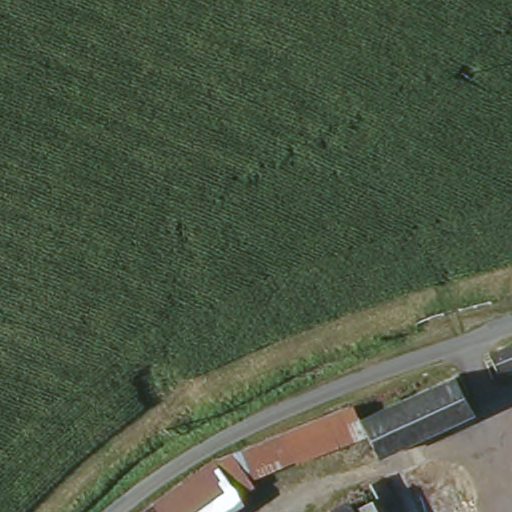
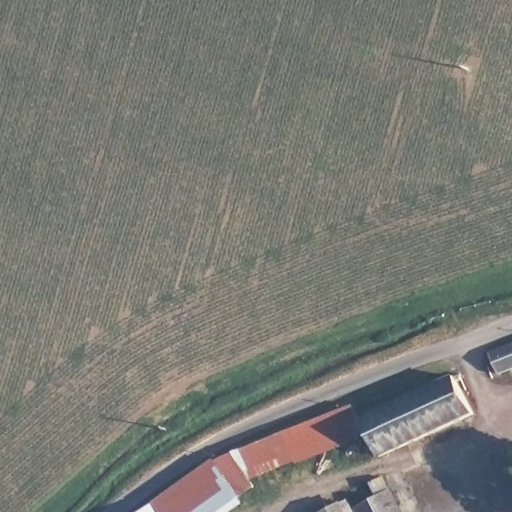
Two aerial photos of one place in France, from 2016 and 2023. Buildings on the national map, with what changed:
unchanged [(512,369),(497,374),(488,353),(512,343),(512,369)]
unchanged [(358,417),(453,376),(473,413),(378,456),(365,435),(358,417)]
unchanged [(284,432),(351,404),(358,417),(365,435),(265,476),(248,484),(250,491),(235,498),(239,507),(232,512),(158,512),(152,503),(212,460),(284,432)]
unchanged [(381,476),(400,512),(353,512),(352,509),(375,499),(367,483),(381,476)]
unchanged [(325,512),(347,500),(352,509),(353,512),(325,512)]
unchanged [(158,512),(140,512),(152,503),(158,512)]

